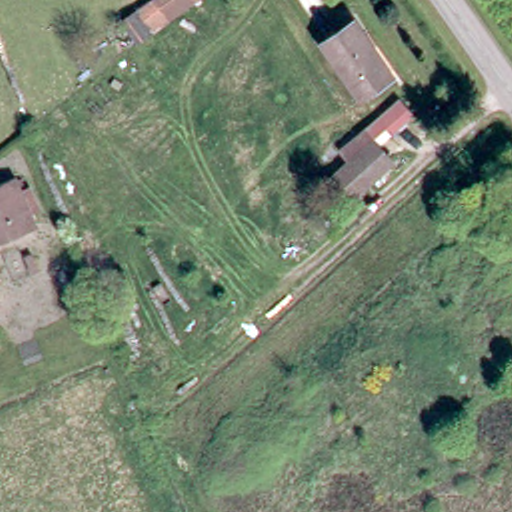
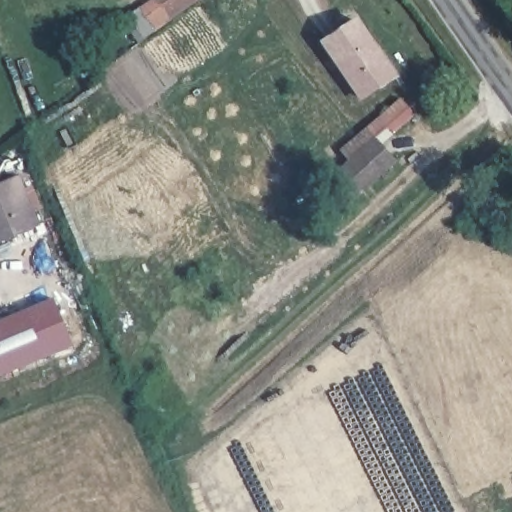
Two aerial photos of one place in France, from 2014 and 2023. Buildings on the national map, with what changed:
unchanged [(146,0),(198,0),(139,42),(120,17),(146,0)]
unchanged [(366,95),(327,41),(357,20),(396,74),(366,95)]
unchanged [(402,100),(415,113),(381,141),(376,135),(358,152),(348,160),(339,150),(402,100)]
unchanged [(345,199),(327,179),(348,160),(358,152),(376,135),(381,141),(394,156),(373,175),(345,199)]
unchanged [(0,179),(20,170),(41,221),(0,238),(0,179)]
new [(73,347),(0,377),(0,318),(51,296),(73,347)]

